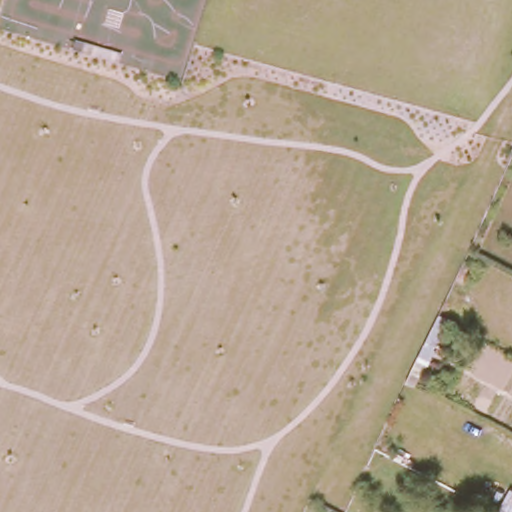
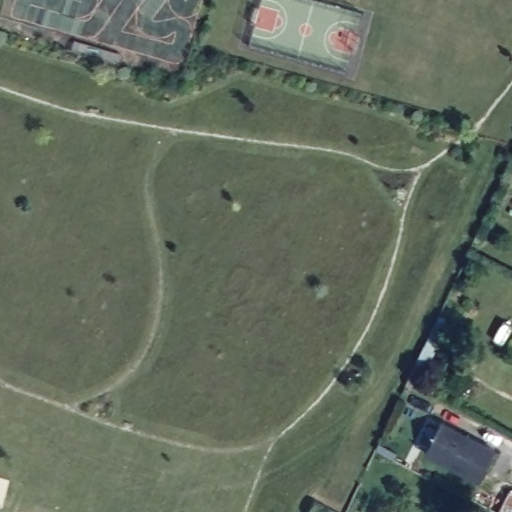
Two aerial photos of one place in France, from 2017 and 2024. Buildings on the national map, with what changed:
unchanged [(413,372),(419,377),(414,387),(407,383),(413,372)]
new [(494,453),(478,483),(425,456),(441,427),(494,453)]

